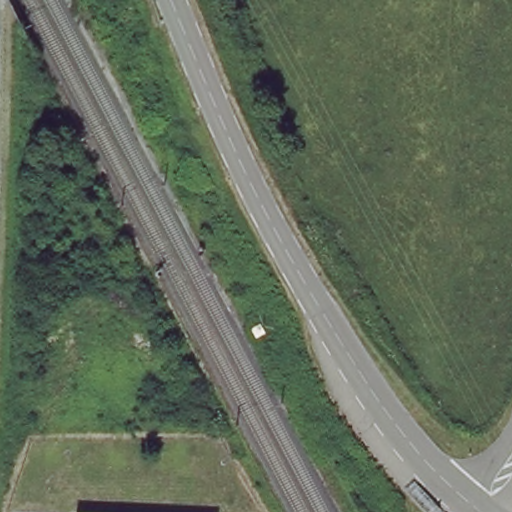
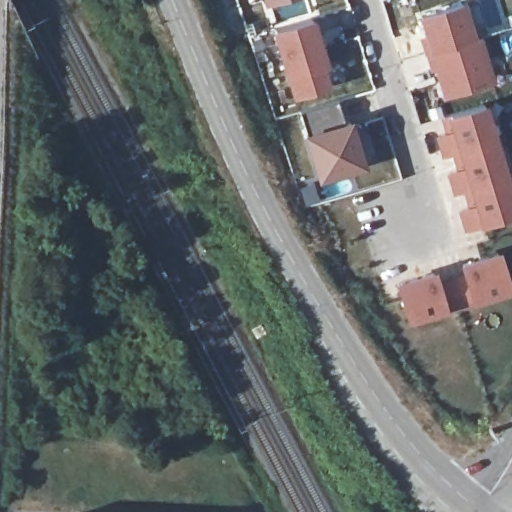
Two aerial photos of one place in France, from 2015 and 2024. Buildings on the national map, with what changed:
new [(255,0),(305,0),(259,15),(255,0)]
new [(470,45),(480,42),(492,86),(445,102),(419,24),(459,10),(470,45)]
new [(321,21),(334,69),(292,80),(279,32),(321,21)]
new [(494,105),(512,170),(512,222),(487,231),(486,229),(468,234),(462,210),(479,205),(475,190),(455,195),(450,174),(468,169),(464,155),(444,160),(437,136),(456,131),(454,117),(494,105)]
new [(349,129),(362,175),(315,189),(301,143),(349,129)]
new [(442,272),(444,280),(465,275),(462,266),(505,253),(512,274),(512,296),(413,326),(401,285),(442,272)]
unchanged [(110,512),(79,512),(80,511),(110,512)]

